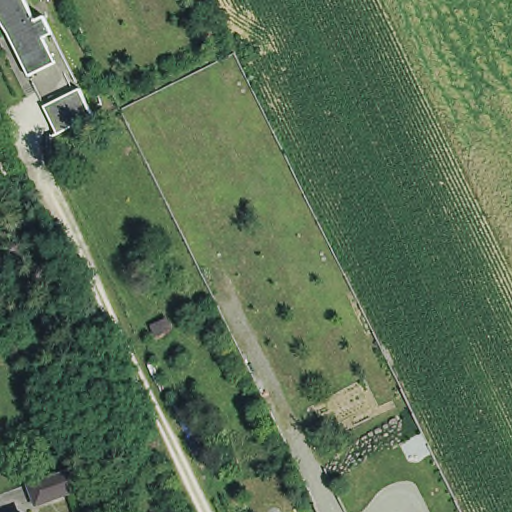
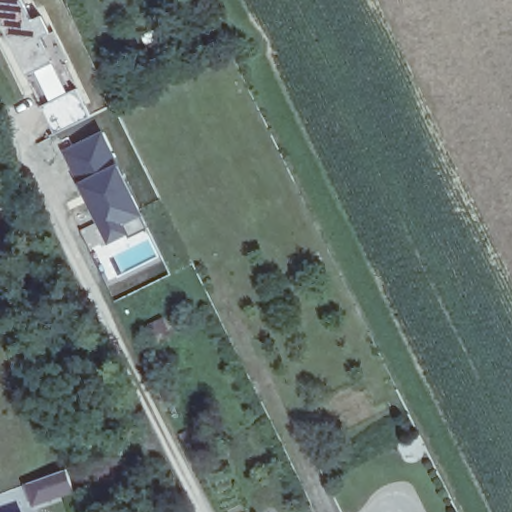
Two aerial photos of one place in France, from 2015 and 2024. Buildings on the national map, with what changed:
unchanged [(57,63),(27,77),(2,27),(0,25),(0,0),(21,0),(32,23),(35,21),(42,17),(63,60),(57,63)]
unchanged [(81,94),(94,120),(88,122),(57,137),(45,111),(75,96),(81,94)]
new [(104,134),(120,167),(144,215),(150,228),(131,237),(128,232),(110,242),(82,185),(67,152),(104,134)]
unchanged [(67,472),(75,491),(33,504),(27,486),(67,472)]

